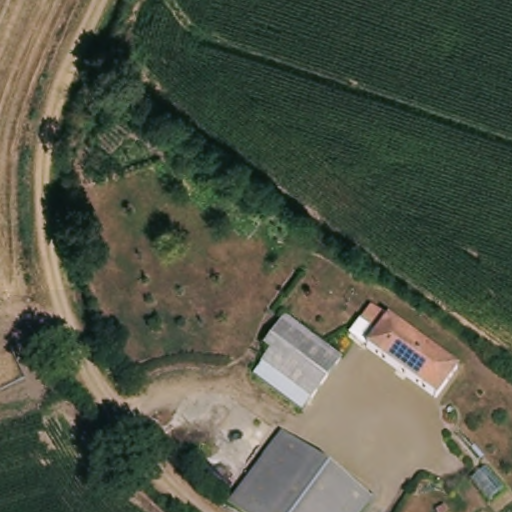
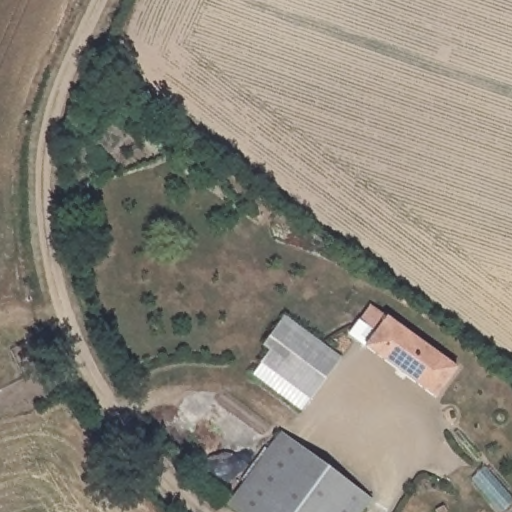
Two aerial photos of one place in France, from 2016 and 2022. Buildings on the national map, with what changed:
unchanged [(283,315),(309,335),(326,310),(353,331),(311,399),(256,357),(283,315)]
unchanged [(391,315),(457,367),(432,396),(366,344),(391,315)]
unchanged [(370,499),(360,512),(237,512),(228,505),(280,433),(370,499)]

